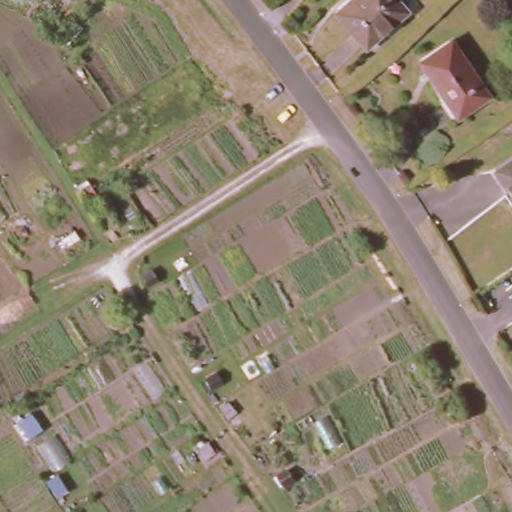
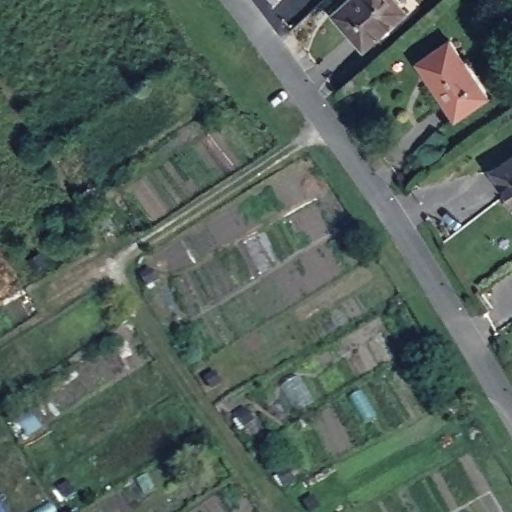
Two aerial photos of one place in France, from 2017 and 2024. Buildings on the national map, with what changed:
unchanged [(410,8),(372,42),(338,6),(345,0),(402,0),(410,8)]
unchanged [(488,91),(457,111),(420,57),(450,36),(488,91)]
unchanged [(492,166),(512,153),(512,196),(492,166)]

